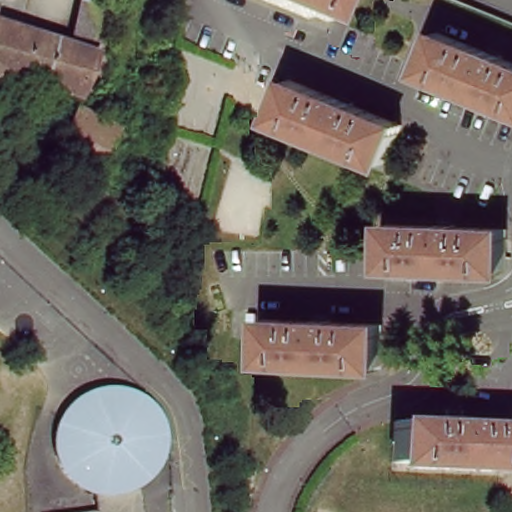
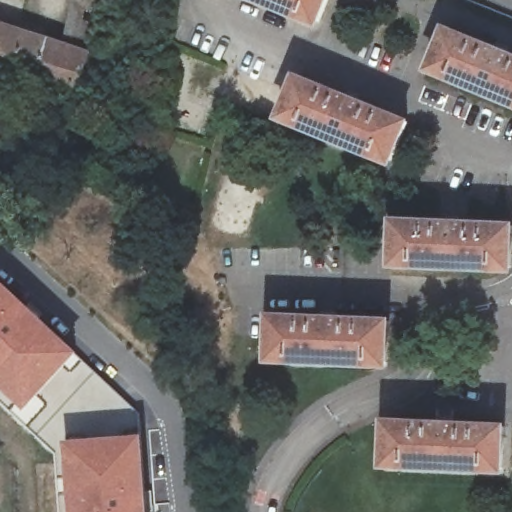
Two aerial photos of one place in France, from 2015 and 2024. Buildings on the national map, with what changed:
unchanged [(65,43),(74,0),(108,0),(98,53),(65,43)]
unchanged [(321,22),(303,14),(301,18),(258,0),(330,0),(321,22)]
unchanged [(9,83),(0,80),(0,22),(44,36),(33,82),(12,75),(9,83)]
unchanged [(431,66),(447,28),(493,48),(494,46),(511,53),(510,55),(512,56),(512,106),(447,79),(448,73),(431,66)]
unchanged [(44,36),(54,39),(65,43),(98,53),(101,55),(87,96),(76,92),(74,96),(33,82),(44,36)]
unchanged [(281,114),(297,76),(344,95),(345,93),(361,100),(360,102),(408,122),(392,161),(375,153),(373,157),(296,124),(297,121),(281,114)]
unchanged [(54,142),(71,107),(122,130),(118,142),(109,138),(96,163),(54,142)]
unchanged [(392,261),(394,221),(445,223),(445,220),(463,221),(462,223),(512,225),(512,266),(492,265),(492,270),(410,267),(410,262),(392,261)]
new [(28,412),(0,386),(0,279),(82,354),(28,412)]
unchanged [(269,356),(271,315),(321,317),(321,315),(338,316),(338,318),(390,321),(387,361),(369,361),(369,365),(287,362),(288,357),(269,356)]
unchanged [(378,468),(380,426),(430,428),(430,426),(449,427),(449,429),(500,431),(498,473),(477,472),(477,476),(397,472),(397,469),(378,468)]
new [(150,512),(72,512),(67,443),(146,436),(150,512)]
demolished [(102,493),(117,488),(131,482),(133,512),(91,512),(90,492),(102,493)]

